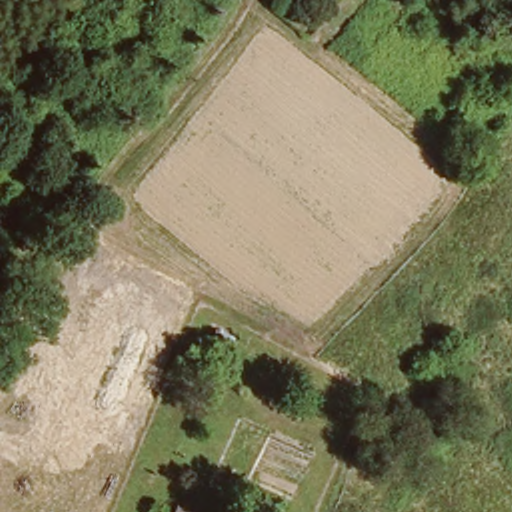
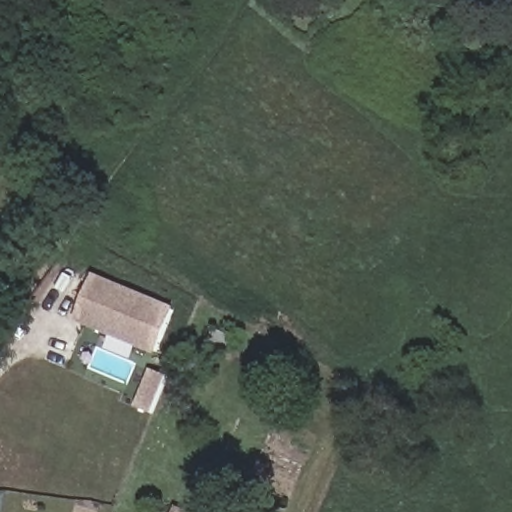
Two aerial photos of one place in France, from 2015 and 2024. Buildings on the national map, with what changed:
new [(155,355),(75,321),(95,274),(175,306),(155,355)]

